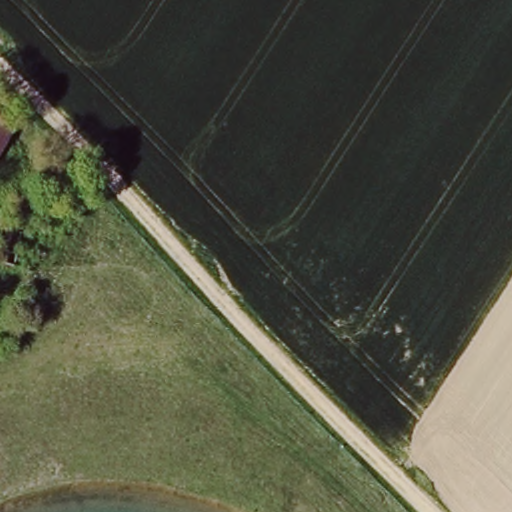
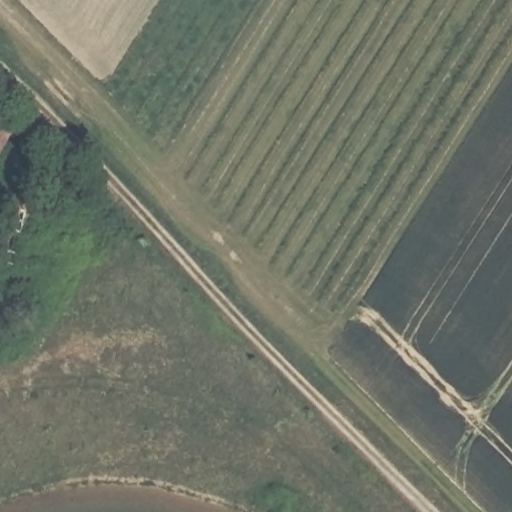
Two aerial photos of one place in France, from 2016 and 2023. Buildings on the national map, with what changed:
unchanged [(22,204),(34,210),(5,270),(0,268),(0,233),(2,228),(10,229),(22,204)]

